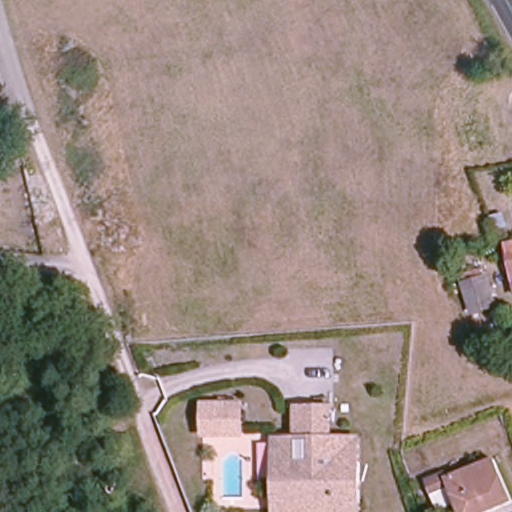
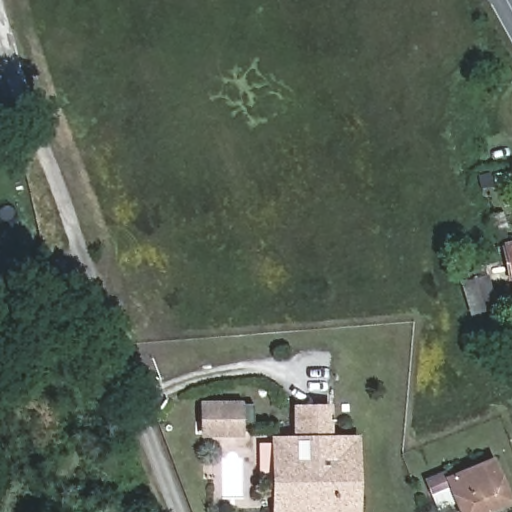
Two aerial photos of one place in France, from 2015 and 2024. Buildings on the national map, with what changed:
unchanged [(510,246),(512,246),(512,256),(510,246)]
unchanged [(488,276),(497,306),(473,312),(465,283),(488,276)]
unchanged [(244,436),(200,437),(201,402),(244,401),(244,436)]
unchanged [(271,438),(293,438),(293,407),(325,407),(326,438),(366,437),(366,512),(272,512),(271,438)]
unchanged [(449,476),(496,458),(512,502),(485,512),(462,512),(457,500),(440,507),(428,478),(447,471),(449,476)]

